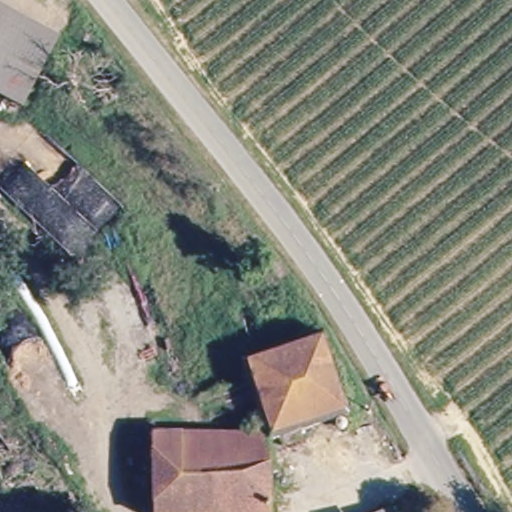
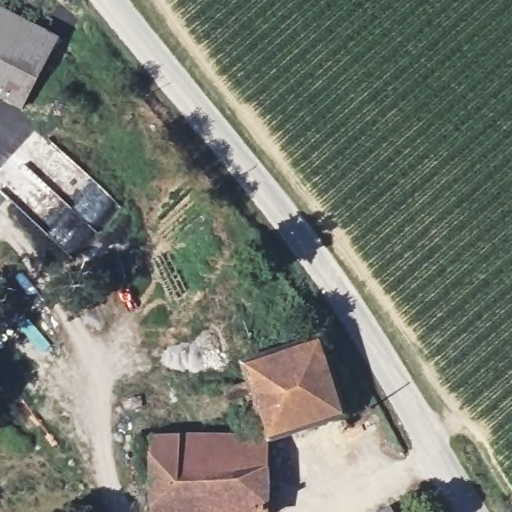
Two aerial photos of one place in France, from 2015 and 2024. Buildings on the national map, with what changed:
unchanged [(0,16),(0,0),(1,0),(56,28),(51,41),(0,16)]
unchanged [(0,95),(0,16),(51,41),(19,104),(0,95)]
unchanged [(239,359),(321,333),(346,414),(265,439),(239,359)]
unchanged [(265,512),(151,512),(151,441),(265,439),(265,512)]
unchanged [(393,499),(399,512),(369,512),(393,499)]

